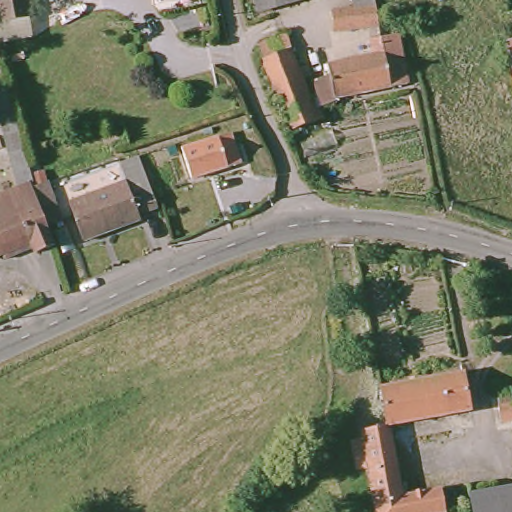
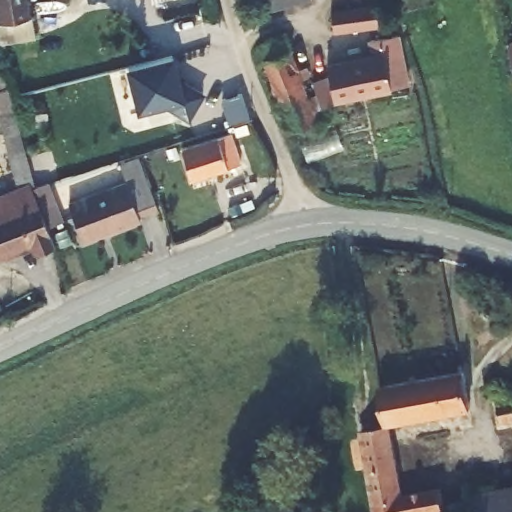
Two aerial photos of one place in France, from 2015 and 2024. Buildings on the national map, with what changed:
unchanged [(29,18),(0,23),(0,0),(26,0),(29,18)]
unchanged [(256,12),(252,0),(295,0),(256,12)]
unchanged [(333,31),(331,12),(375,6),(378,25),(333,31)]
unchanged [(317,100),(313,88),(329,82),(327,70),(374,60),(371,45),(397,40),(407,90),(391,93),(335,105),(336,108),(321,113),(317,100)]
unchanged [(286,41),(307,104),(317,100),(321,113),(318,114),(319,119),(314,121),(316,127),(291,136),(264,64),(259,50),(286,41)]
unchanged [(512,48),(512,74),(511,70),(507,50),(512,48)]
new [(172,55),(178,79),(203,94),(188,118),(164,104),(139,110),(128,66),(172,55)]
unchanged [(18,188),(9,154),(2,128),(0,121),(0,78),(3,77),(7,89),(16,125),(19,124),(33,184),(18,188)]
unchanged [(231,133),(241,164),(191,179),(182,148),(231,133)]
unchanged [(73,209),(131,187),(124,169),(143,162),(162,213),(143,220),(145,225),(88,246),(73,209)]
unchanged [(0,254),(0,197),(13,191),(14,195),(19,193),(18,188),(33,184),(34,186),(32,187),(54,246),(36,253),(34,248),(4,260),(2,253),(0,254)]
unchanged [(62,221),(49,226),(34,187),(48,184),(62,221)]
unchanged [(463,378),(469,416),(390,430),(388,431),(386,418),(381,392),(463,378)]
unchanged [(501,408),(498,390),(512,388),(512,407),(501,408)]
unchanged [(441,493),(444,512),(376,512),(375,506),(362,436),(388,431),(390,430),(403,500),(421,497),(441,493)]
unchanged [(474,512),(473,507),(512,500),(512,512),(474,512)]

